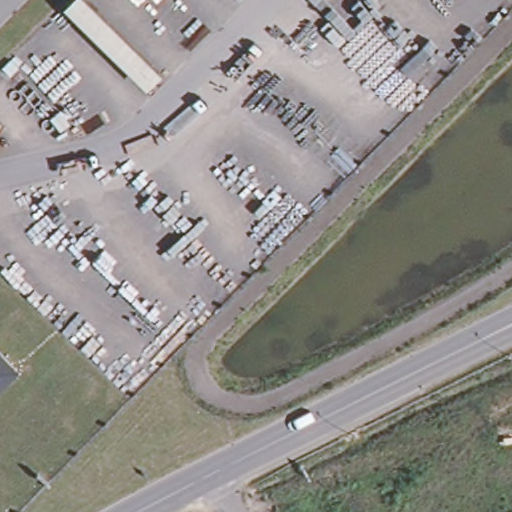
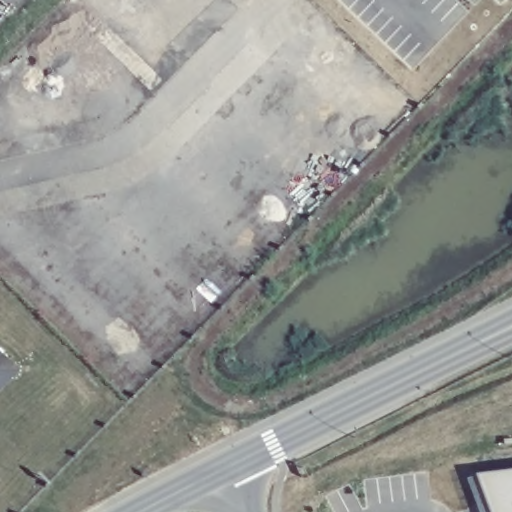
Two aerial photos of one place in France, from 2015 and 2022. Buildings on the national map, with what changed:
unchanged [(162,74),(147,90),(64,7),(71,0),(87,0),(162,74)]
unchanged [(0,384),(0,352),(16,367),(0,384)]
new [(512,470),(512,512),(490,512),(477,475),(512,470)]

